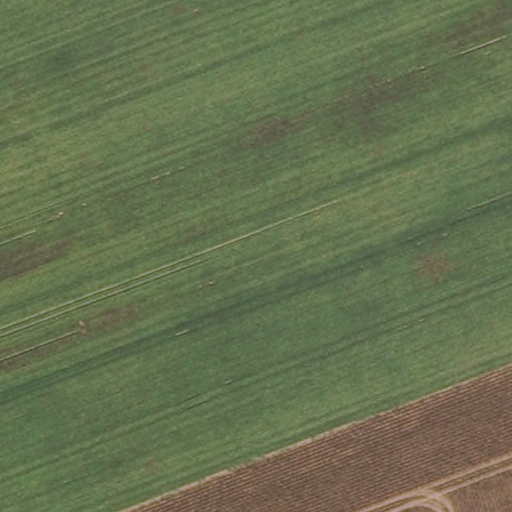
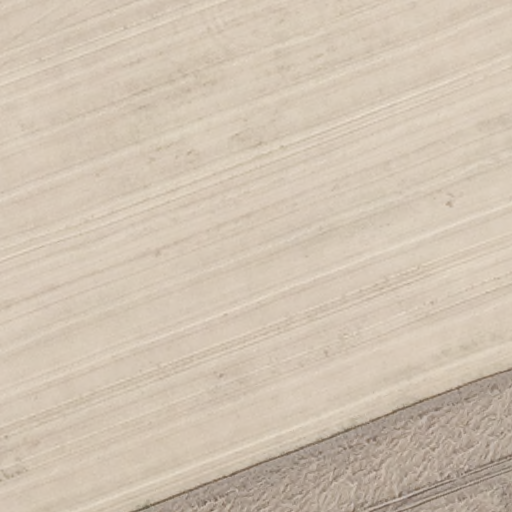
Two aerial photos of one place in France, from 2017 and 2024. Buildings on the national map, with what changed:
[]

